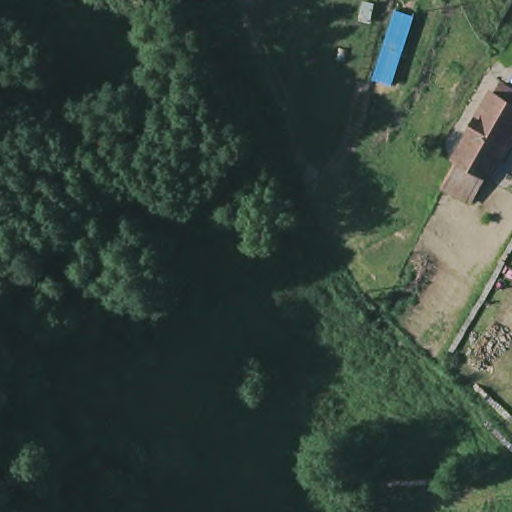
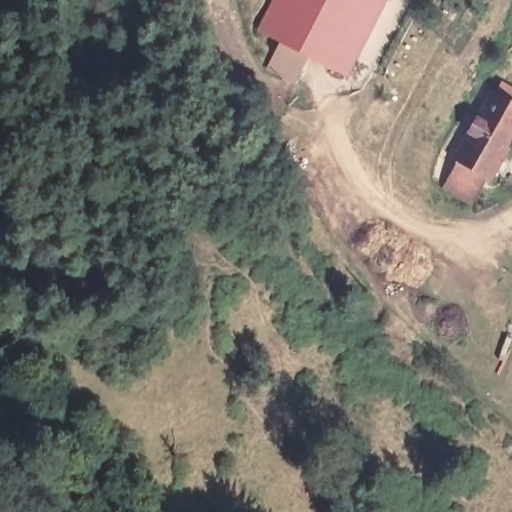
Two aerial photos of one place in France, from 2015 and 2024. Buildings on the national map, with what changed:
new [(256,31),(272,0),(387,0),(348,77),(256,31)]
unchanged [(449,171),(498,78),(512,90),(512,135),(486,184),(471,206),(440,188),(449,171)]

